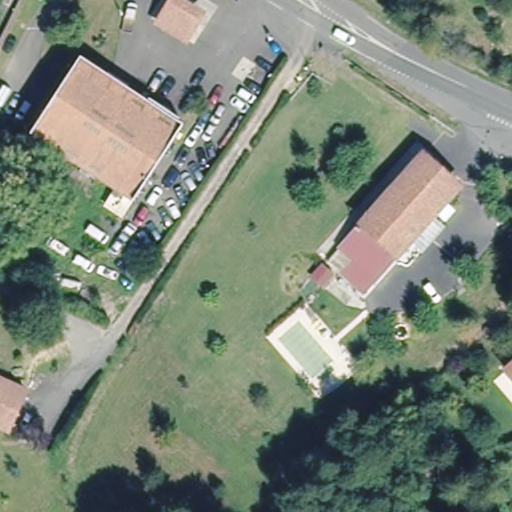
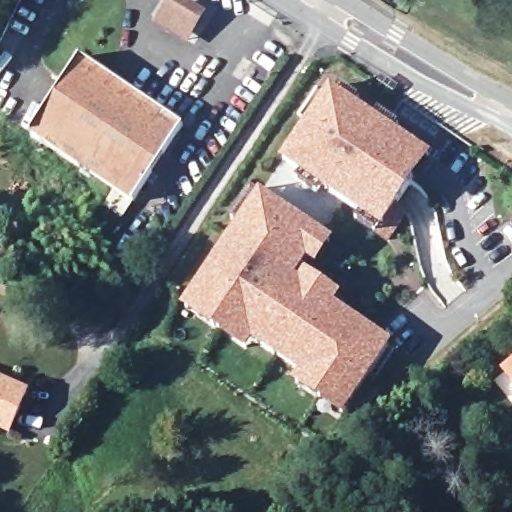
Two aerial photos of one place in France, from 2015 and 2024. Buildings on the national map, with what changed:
unchanged [(186,41),(160,26),(173,5),(198,21),(186,41)]
unchanged [(100,207),(111,191),(26,135),(76,59),(179,127),(129,203),(127,202),(117,217),(100,207)]
new [(432,155),(398,205),(410,212),(391,244),(378,235),(382,226),(281,161),(330,85),(432,155)]
demolished [(408,241),(392,258),(391,258),(359,294),(324,262),(376,204),(391,187),(392,187),(399,178),(419,156),(454,188),(427,219),(408,241)]
new [(334,241),(318,267),(308,261),(298,278),(300,280),(305,271),(343,295),(336,305),(393,341),(345,414),(294,384),(299,371),(253,342),(248,350),(183,308),(260,190),(334,241)]
unchanged [(512,367),(512,380),(506,372),(512,367)]
unchanged [(10,432),(0,427),(0,380),(27,392),(10,432)]

